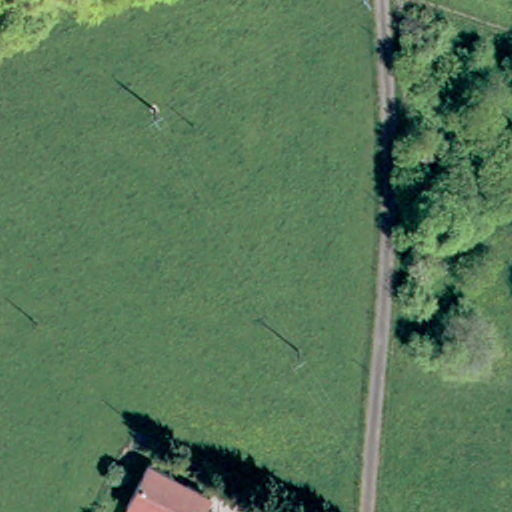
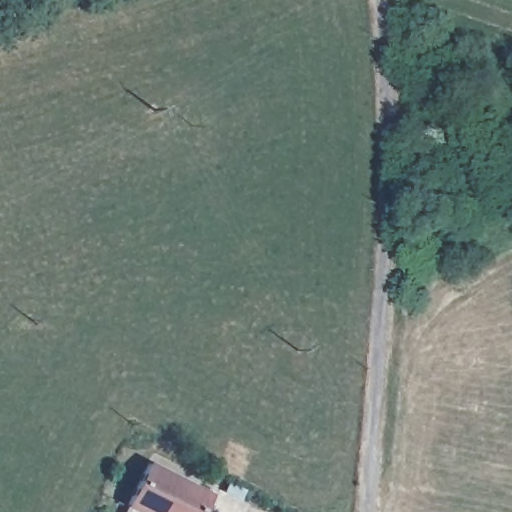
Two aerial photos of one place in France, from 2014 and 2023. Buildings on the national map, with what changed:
unchanged [(134,505),(156,463),(217,495),(208,512),(130,512),(134,505)]

